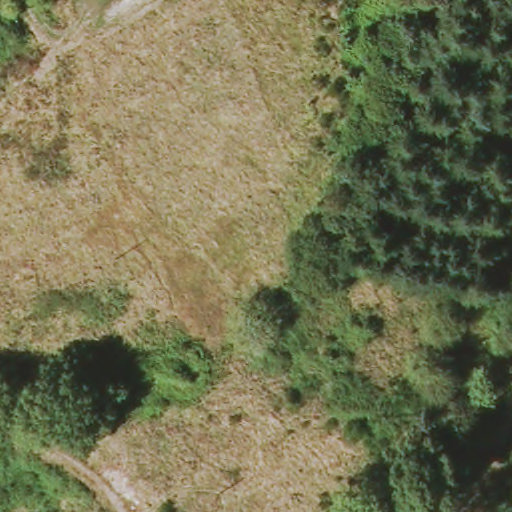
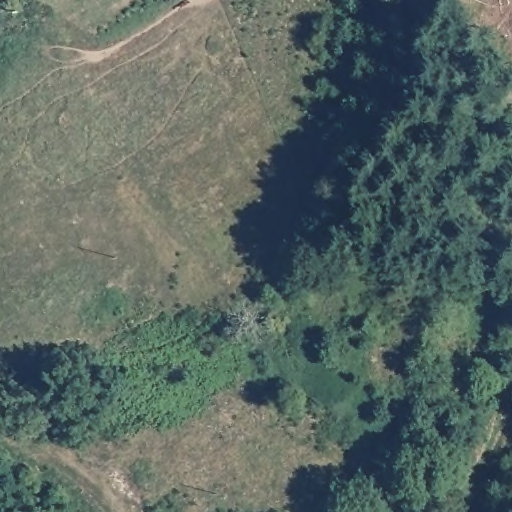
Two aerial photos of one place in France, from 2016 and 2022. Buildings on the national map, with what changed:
[]

